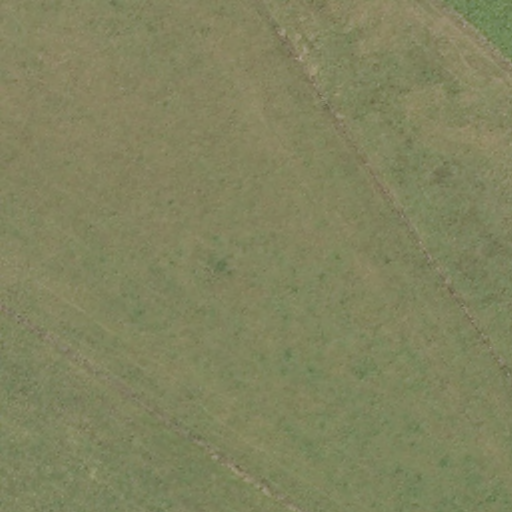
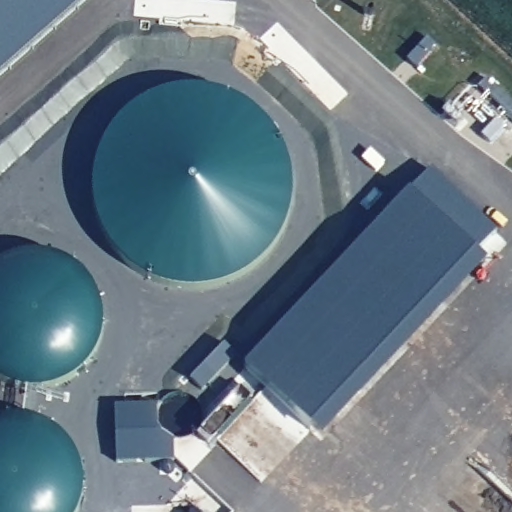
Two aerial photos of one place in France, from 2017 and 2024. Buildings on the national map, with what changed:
new [(89,0),(0,78),(0,0),(89,0)]
new [(245,367),(410,192),(431,169),(496,232),(477,254),(487,266),(321,442),(245,367)]
new [(190,379),(225,344),(237,357),(202,393),(190,379)]
new [(115,404),(157,403),(157,427),(160,431),(173,441),(173,459),(117,461),(115,404)]

